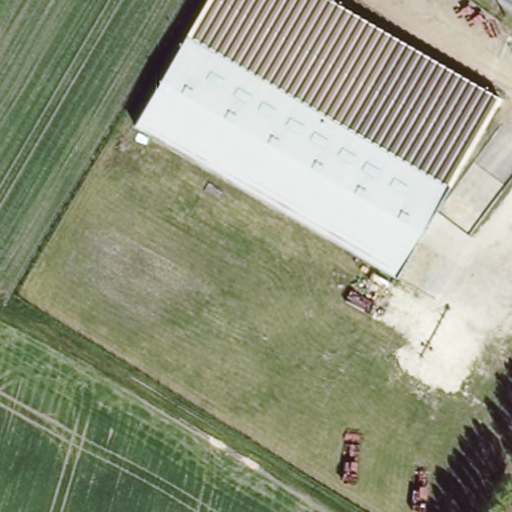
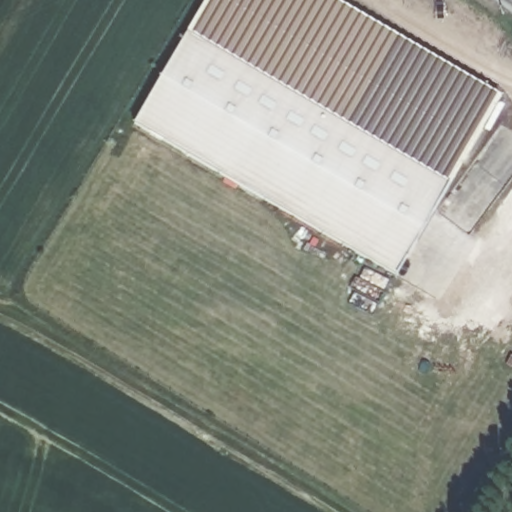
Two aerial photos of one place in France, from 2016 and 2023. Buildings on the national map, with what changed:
unchanged [(421,237),(400,272),(138,120),(172,62),(209,0),(341,0),(503,95),(439,206),(421,237)]

